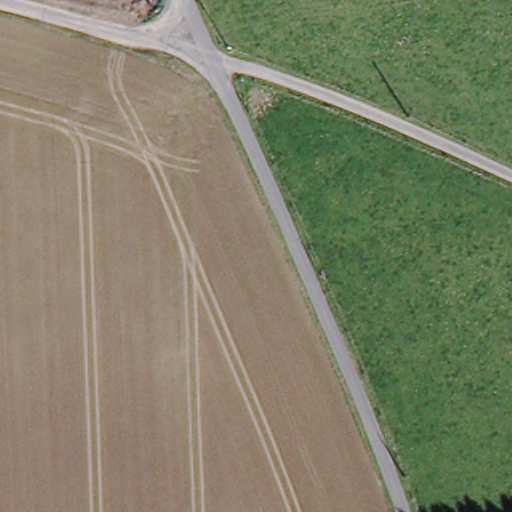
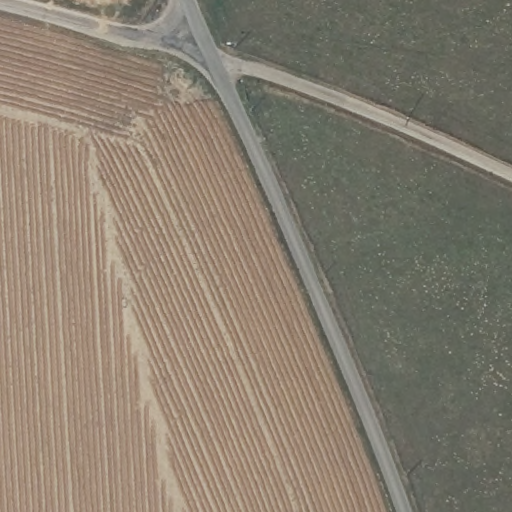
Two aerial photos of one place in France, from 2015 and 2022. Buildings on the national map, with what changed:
[]

